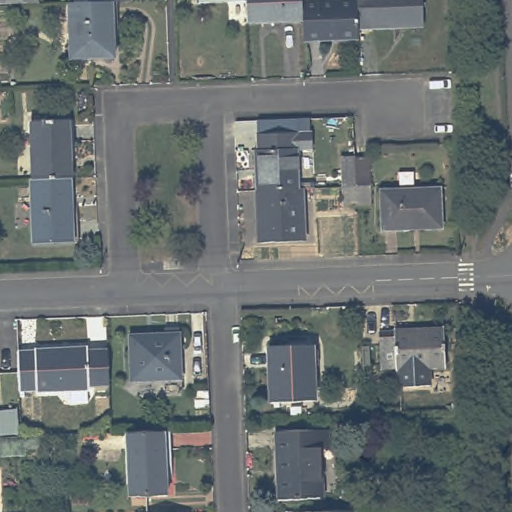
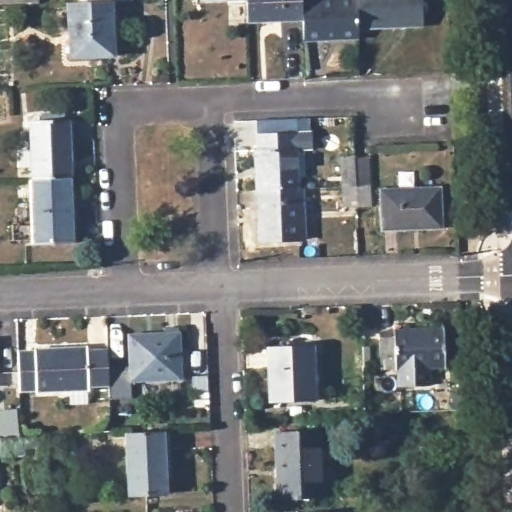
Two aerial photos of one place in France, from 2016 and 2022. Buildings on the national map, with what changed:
unchanged [(0,2),(0,0),(18,0),(18,1),(0,2)]
unchanged [(113,1),(87,2),(87,0),(131,0),(131,1),(113,1)]
unchanged [(248,19),(247,0),(302,0),(302,16),(248,19)]
unchanged [(357,33),(303,36),(302,16),(302,0),(357,0),(357,23),(357,33)]
unchanged [(357,23),(357,0),(421,0),(421,20),(357,23)]
unchanged [(87,2),(113,1),(115,56),(71,57),(67,3),(87,2)]
unchanged [(30,121),(68,120),(70,178),(33,179),(30,121)]
unchanged [(254,164),(256,164),(256,148),(310,145),(311,163),(296,163),(298,202),(256,204),(254,164)]
unchanged [(341,186),(340,156),(353,156),(355,186),(369,185),(370,206),(356,206),(343,206),(341,186)]
unchanged [(33,179),(70,178),(72,244),(33,245),(30,179),(33,179)]
unchanged [(444,193),(446,233),(386,235),(385,194),(444,193)]
unchanged [(298,202),(302,202),(304,253),(258,255),(256,204),(298,202)]
unchanged [(163,333),(163,328),(177,327),(179,379),(129,381),(128,335),(163,333)]
unchanged [(398,332),(398,329),(448,327),(449,367),(433,368),(434,383),(405,384),(405,369),(401,369),(401,366),(385,367),(384,332),(398,332)]
unchanged [(311,345),(313,400),(271,401),(269,346),(311,345)]
unchanged [(31,356),(31,355),(83,352),(83,356),(102,355),(103,391),(84,392),(84,395),(31,398),(31,395),(14,395),(12,357),(31,356)]
unchanged [(326,428),(327,449),(321,449),(321,497),(276,498),(274,430),(326,428)]
unchanged [(163,432),(165,494),(127,496),(124,433),(163,432)]
unchanged [(354,511),(354,512),(321,512),(354,511)]

